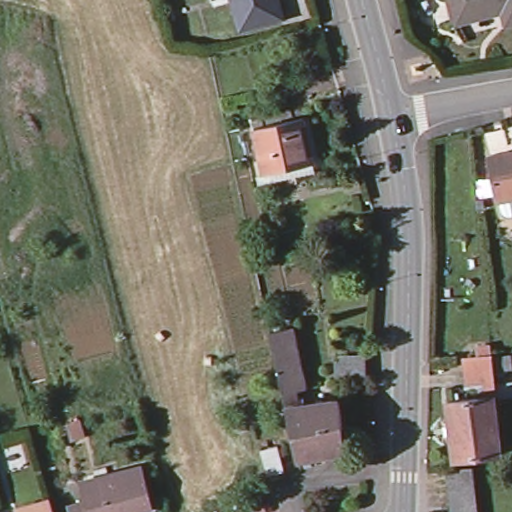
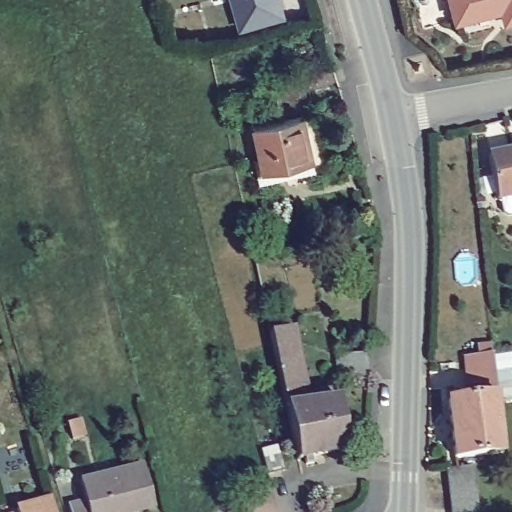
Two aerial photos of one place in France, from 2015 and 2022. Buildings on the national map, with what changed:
unchanged [(238,37),(229,4),(209,9),(207,0),(272,0),(280,26),(238,37)]
unchanged [(497,12),(451,20),(448,0),(512,0),(512,23),(500,25),(497,12)]
unchanged [(296,166),(260,174),(258,166),(263,165),(255,119),(302,109),(313,155),(315,163),(296,166)]
unchanged [(486,154),(512,149),(512,195),(495,198),(486,154)]
unchanged [(312,245),(315,257),(300,260),(297,248),(312,245)]
unchanged [(287,321),(300,381),(278,386),(266,326),(287,321)]
unchanged [(333,376),(331,352),(361,348),(363,374),(333,376)]
unchanged [(451,458),(445,401),(481,397),(481,383),(466,384),(464,358),(480,357),(480,351),(490,351),(495,399),(498,453),(451,458)]
unchanged [(309,451),(293,454),(282,402),(335,395),(341,445),(323,448),(325,454),(311,457),(309,451)]
unchanged [(83,436),(72,439),(67,423),(79,420),(83,436)]
unchanged [(275,441),(280,465),(262,470),(256,445),(275,441)]
unchanged [(141,461),(153,502),(123,512),(112,512),(102,473),(141,461)]
unchanged [(447,505),(446,490),(444,469),(469,467),(471,487),(473,504),(474,512),(448,512),(447,505)]
unchanged [(68,505),(85,500),(79,480),(102,473),(112,512),(70,512),(68,505)]
unchanged [(12,506),(46,496),(51,512),(14,512),(12,506)]

